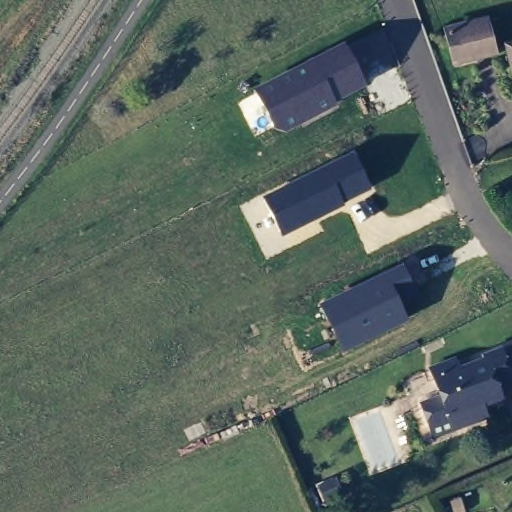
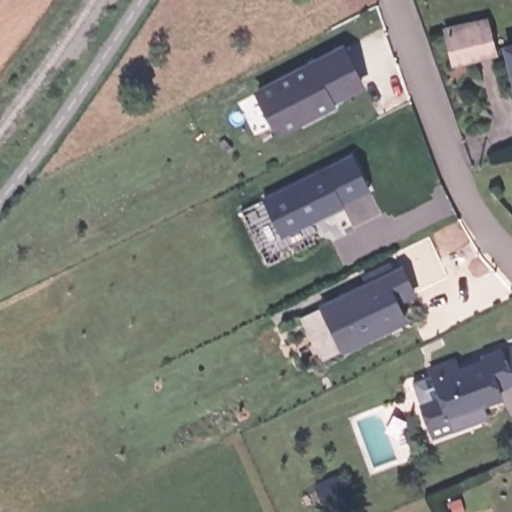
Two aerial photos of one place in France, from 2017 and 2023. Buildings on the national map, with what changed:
unchanged [(445,23),(484,13),(496,53),(459,63),(445,23)]
unchanged [(253,89),(344,44),(367,86),(334,102),(336,107),(286,133),(272,128),(253,89)]
unchanged [(261,198),(354,153),(371,191),(343,204),(344,208),(280,238),(261,198)]
unchanged [(319,304),(404,265),(417,292),(400,300),(409,321),(343,352),(319,304)]
unchanged [(505,395),(456,417),(460,427),(441,436),(427,404),(442,397),(432,375),(453,365),(456,372),(484,359),(483,357),(512,344),(512,381),(501,386),(505,395)]

